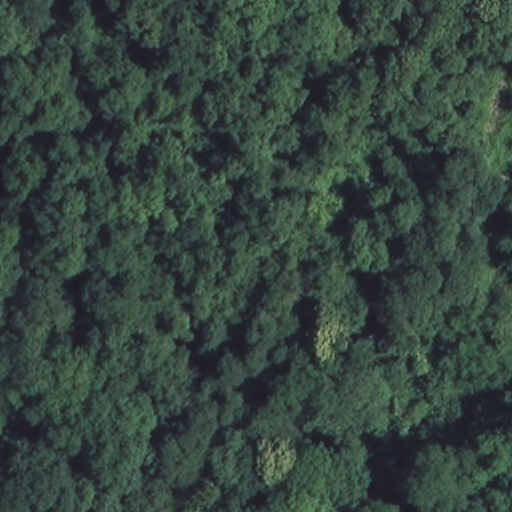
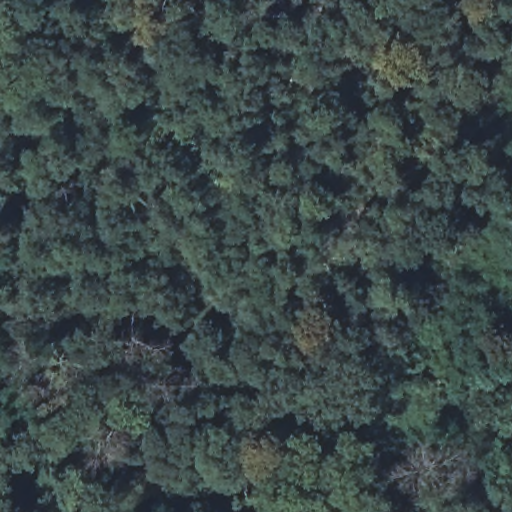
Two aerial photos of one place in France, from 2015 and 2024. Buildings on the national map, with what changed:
unchanged [(512,382),(512,402),(503,397),(512,382)]

